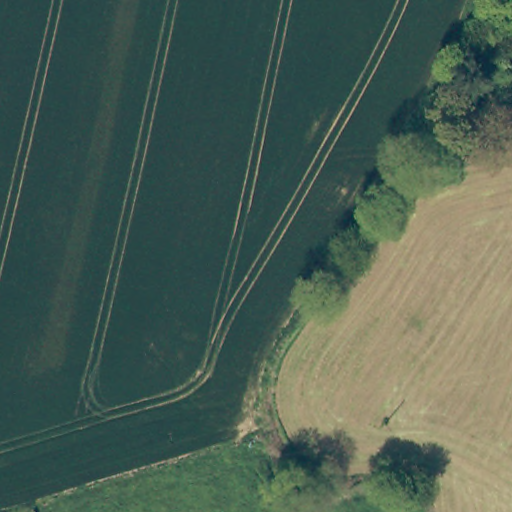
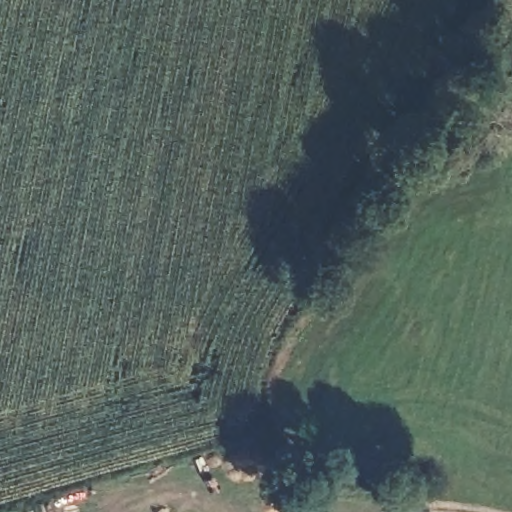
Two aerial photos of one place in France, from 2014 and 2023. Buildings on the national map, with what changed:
unchanged [(512,0),(512,47),(497,47),(500,0),(512,0)]

